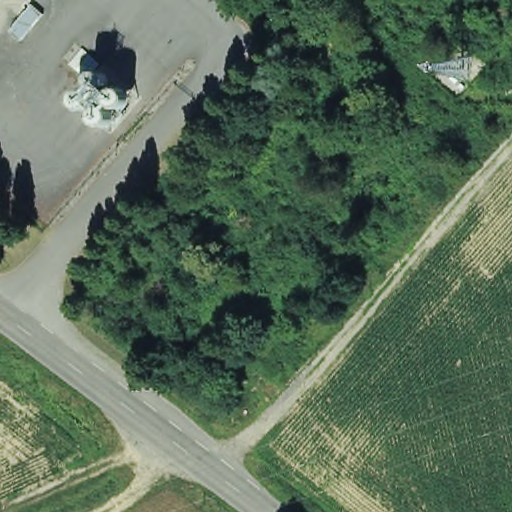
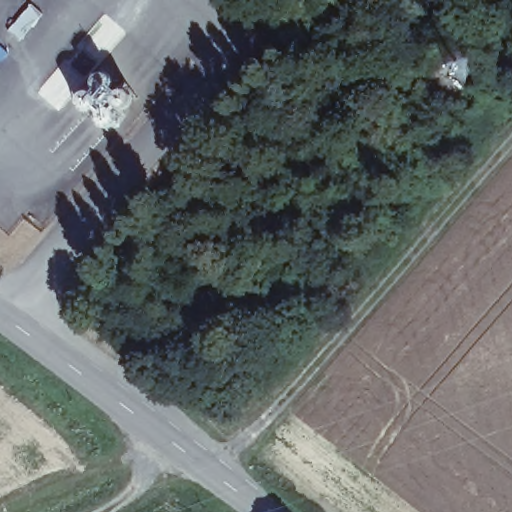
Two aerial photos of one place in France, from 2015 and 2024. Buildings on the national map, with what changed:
unchanged [(81,108),(78,98),(88,78),(96,73),(102,71),(123,88),(132,93),(134,96),(130,104),(122,116),(117,121),(109,126),(97,123),(81,108)]

